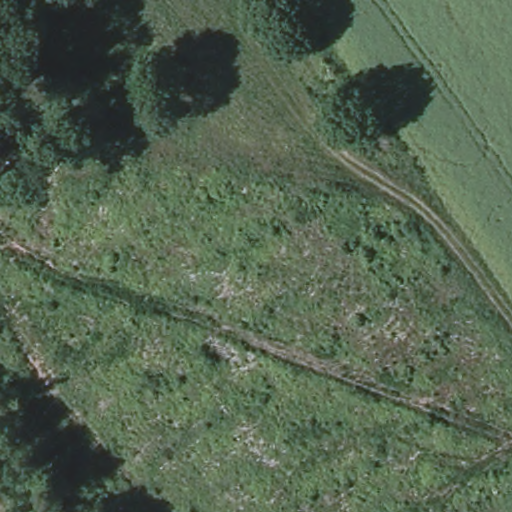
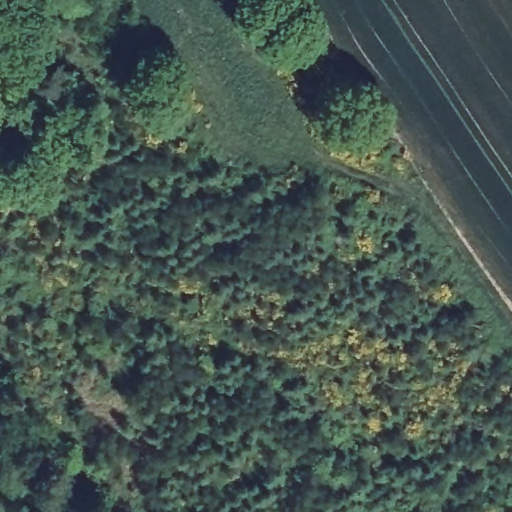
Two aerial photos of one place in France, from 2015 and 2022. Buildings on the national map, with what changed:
[]

